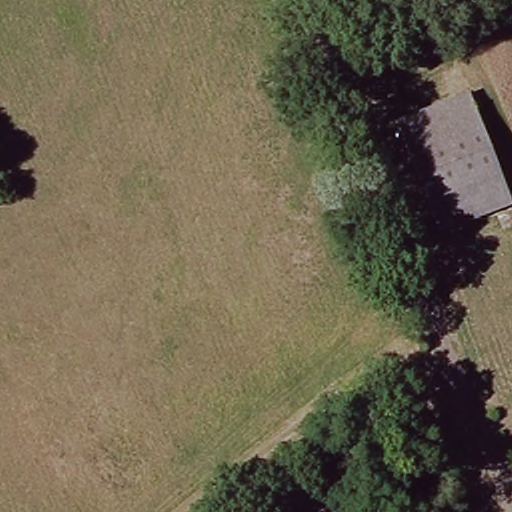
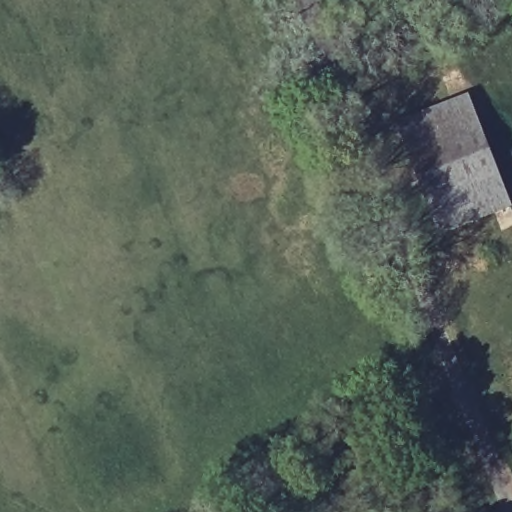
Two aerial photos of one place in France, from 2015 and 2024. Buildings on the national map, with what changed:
unchanged [(398,130),(465,100),(512,206),(512,208),(447,238),(398,130)]

